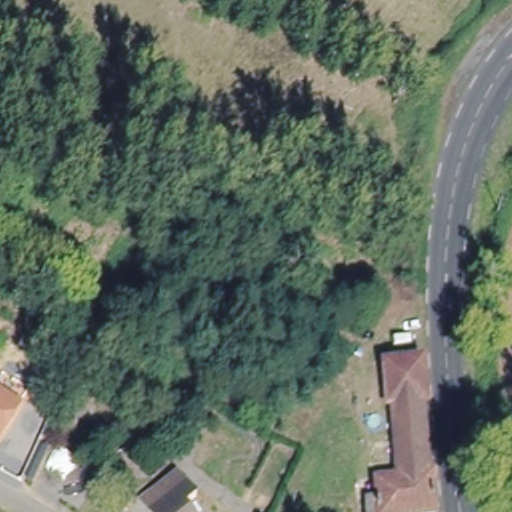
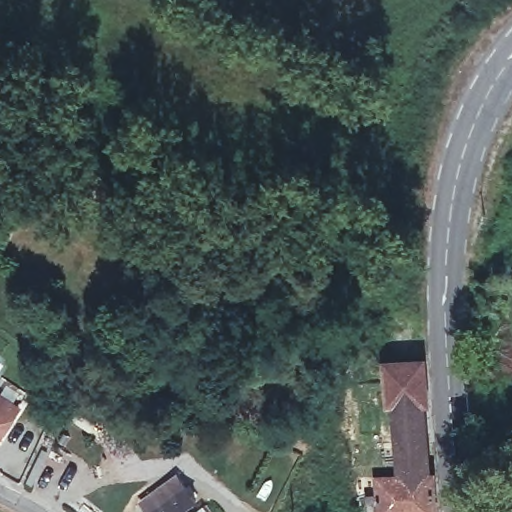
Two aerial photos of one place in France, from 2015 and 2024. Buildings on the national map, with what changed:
unchanged [(424,355),(428,397),(421,398),(426,476),(434,476),(438,509),(414,511),(415,512),(367,512),(366,494),(381,493),(379,474),(397,473),(392,400),(386,400),(383,356),(424,355)]
unchanged [(0,423),(0,386),(17,401),(0,423)]
unchanged [(209,505),(200,512),(146,512),(145,512),(144,508),(170,487),(188,472),(195,482),(212,503),(209,505)]

